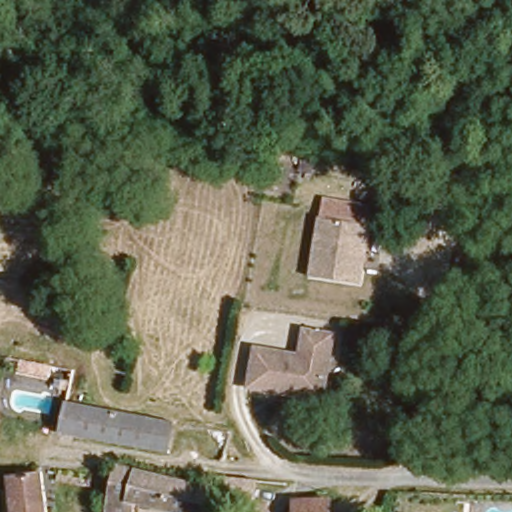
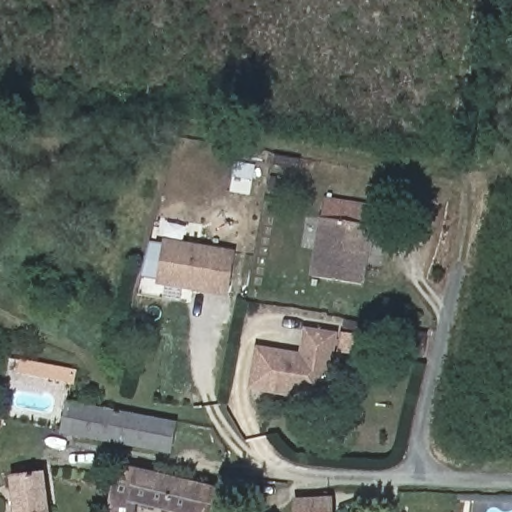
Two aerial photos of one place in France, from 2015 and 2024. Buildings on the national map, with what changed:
unchanged [(320,197),(373,206),(362,283),(308,276),(320,197)]
new [(155,285),(162,239),(235,250),(229,296),(155,285)]
unchanged [(336,332),(324,401),(246,390),(254,346),(298,353),(302,327),(336,332)]
unchanged [(64,401),(129,411),(122,441),(59,430),(64,401)]
unchanged [(170,449),(122,441),(129,411),(175,418),(170,449)]
unchanged [(5,467),(39,461),(45,512),(10,512),(7,491),(5,467)]
unchanged [(118,466),(159,476),(217,490),(220,476),(255,478),(254,497),(216,493),(212,512),(177,512),(135,503),(133,512),(108,512),(110,498),(118,466)]
unchanged [(330,498),(330,512),(294,512),(293,500),(330,498)]

